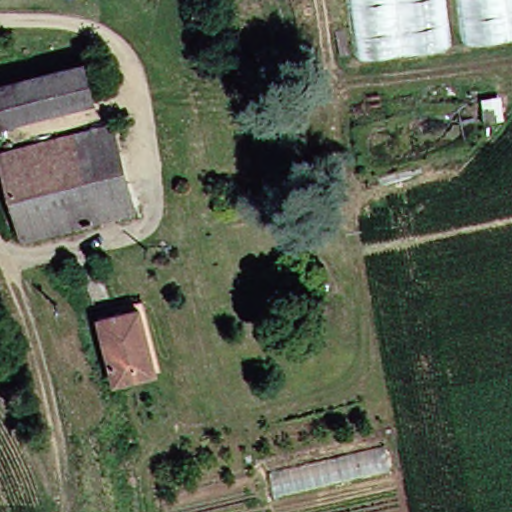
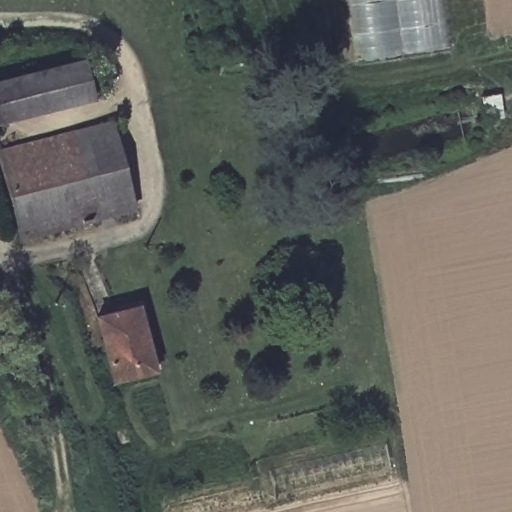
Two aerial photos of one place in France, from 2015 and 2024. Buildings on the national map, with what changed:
unchanged [(354,52),(347,0),(432,0),(438,44),(354,52)]
demolished [(459,39),(453,0),(512,0),(512,31),(459,39)]
unchanged [(89,98),(0,120),(0,76),(79,56),(89,98)]
unchanged [(105,119),(128,202),(86,214),(64,129),(105,119)]
unchanged [(0,189),(0,145),(64,129),(86,214),(13,234),(0,189)]
unchanged [(133,301),(149,364),(108,376),(91,312),(133,301)]

